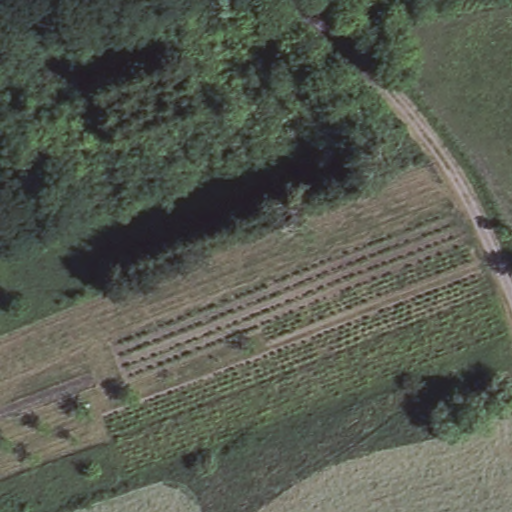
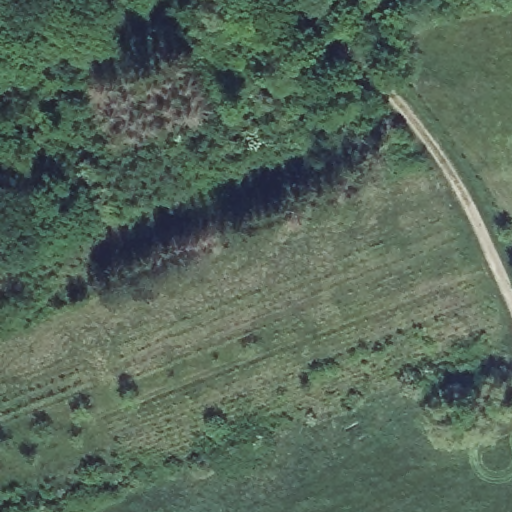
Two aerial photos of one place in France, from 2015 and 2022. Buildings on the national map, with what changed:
unchanged [(500,377),(505,388),(487,397),(482,385),(500,377)]

